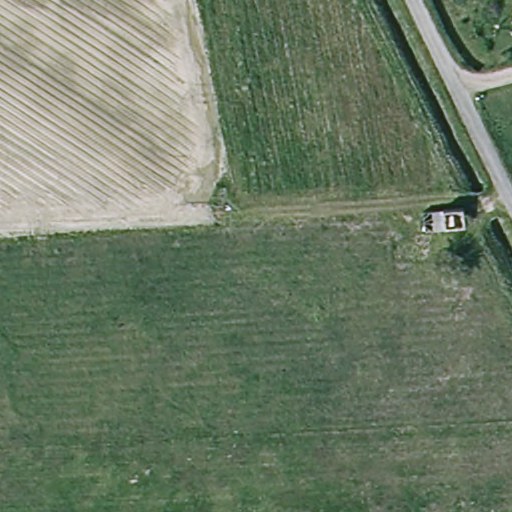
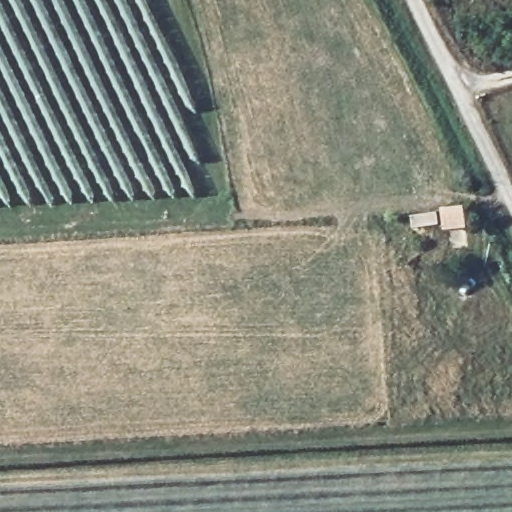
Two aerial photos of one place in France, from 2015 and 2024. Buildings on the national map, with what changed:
unchanged [(462,209),(464,228),(445,230),(442,210),(462,209)]

